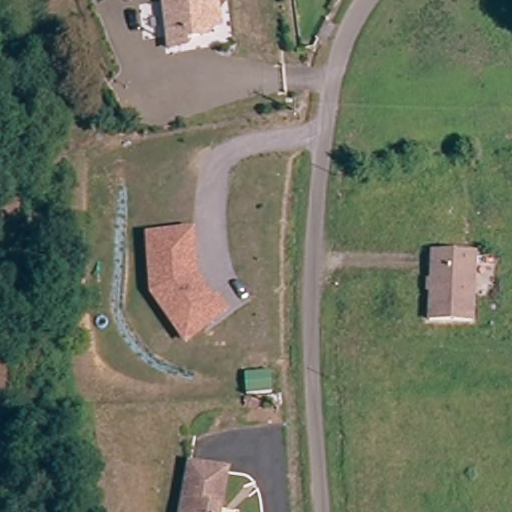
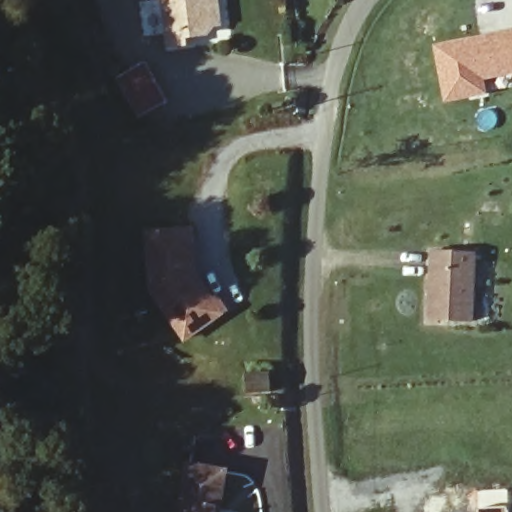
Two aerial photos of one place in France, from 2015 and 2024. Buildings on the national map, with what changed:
unchanged [(223,25),(223,26),(217,34),(194,36),(195,44),(177,46),(172,0),(224,0),(227,24),(223,25)]
new [(512,27),(512,75),(485,80),(488,93),(443,103),(432,43),(512,27)]
unchanged [(189,342),(152,290),(149,232),(197,230),(201,275),(230,311),(189,342)]
unchanged [(480,317),(437,316),(440,248),(483,250),(480,317)]
unchanged [(232,469),(226,506),(221,506),(221,512),(189,512),(196,464),(232,469)]

